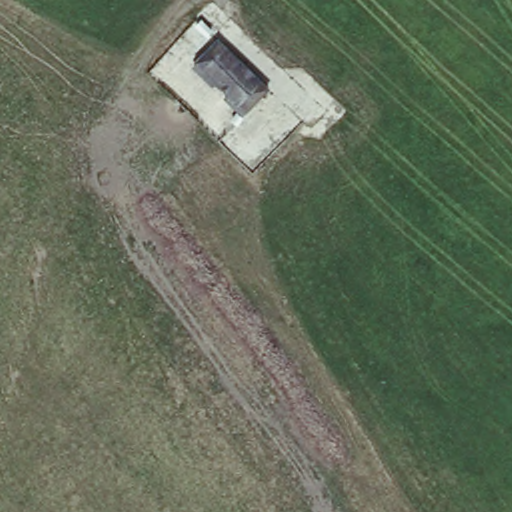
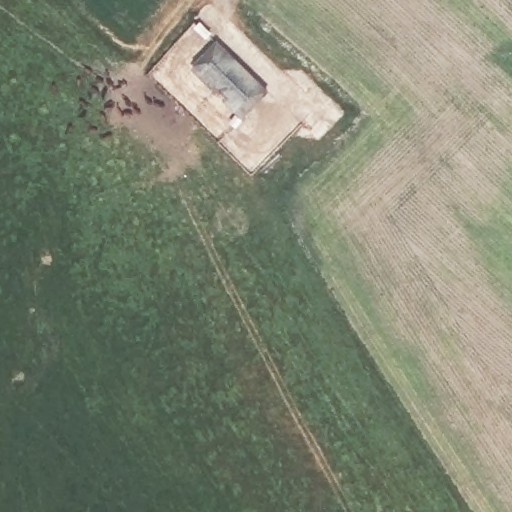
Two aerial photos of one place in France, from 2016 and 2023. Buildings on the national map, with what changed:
unchanged [(265,88),(242,110),(195,65),(217,41),(265,88)]

